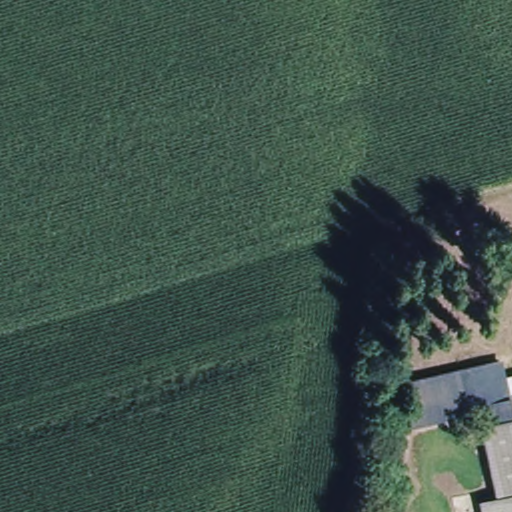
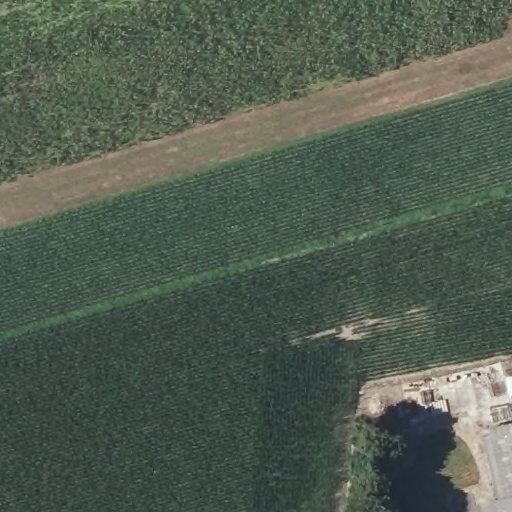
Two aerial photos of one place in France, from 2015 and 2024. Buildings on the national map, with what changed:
unchanged [(492,500),(486,490),(505,482),(485,418),(419,436),(406,385),(500,367),(508,381),(512,380),(512,512),(484,512),(482,505),(492,500)]

